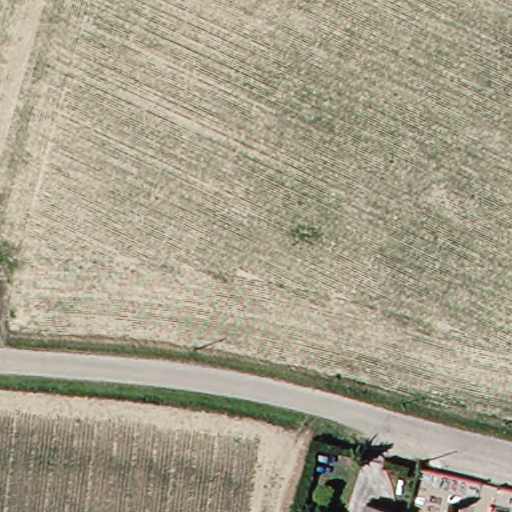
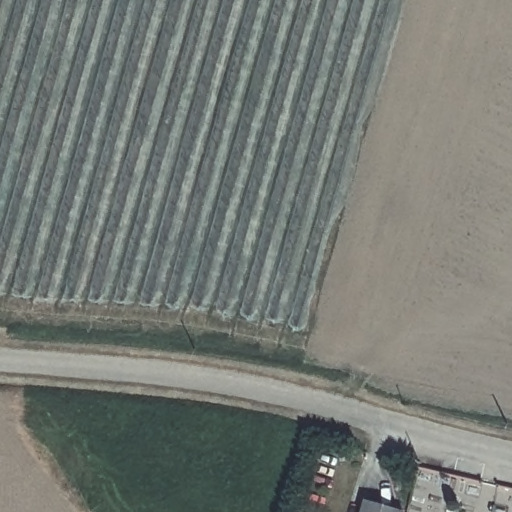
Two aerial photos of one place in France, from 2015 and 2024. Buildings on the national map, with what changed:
unchanged [(357,500),(391,512),(354,512),(357,500)]

